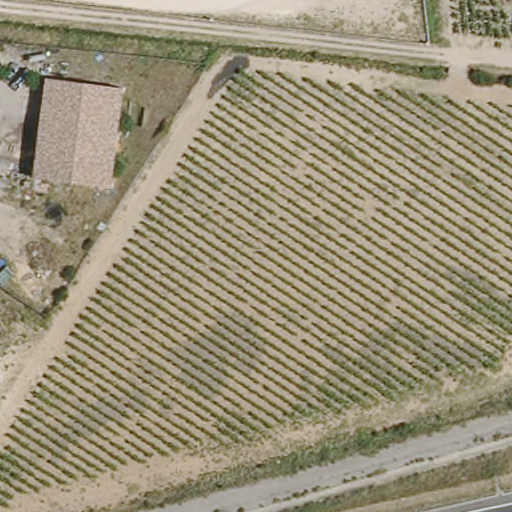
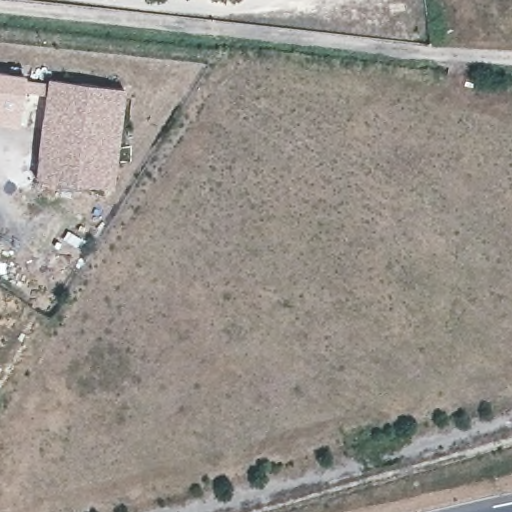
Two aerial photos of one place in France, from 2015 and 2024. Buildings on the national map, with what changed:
new [(0,124),(0,72),(24,75),(18,126),(0,124)]
unchanged [(112,91),(100,191),(24,181),(37,82),(112,91)]

